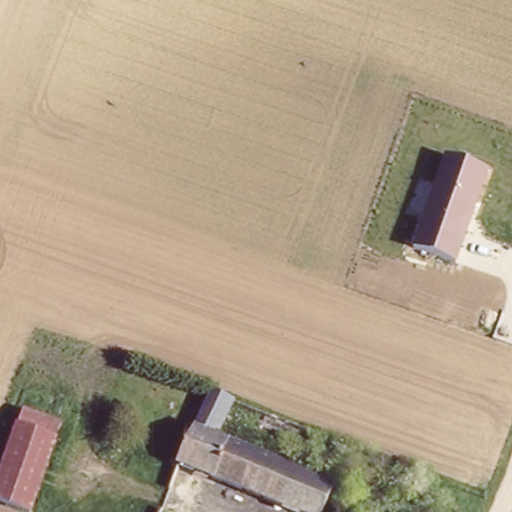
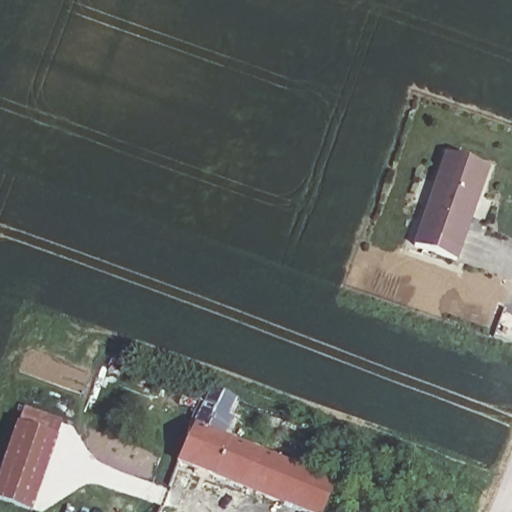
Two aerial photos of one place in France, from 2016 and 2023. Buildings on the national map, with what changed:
unchanged [(457,264),(412,248),(444,154),(490,171),(457,264)]
unchanged [(211,390),(236,399),(223,434),(197,424),(211,390)]
unchanged [(62,424),(31,512),(13,512),(0,507),(0,473),(22,410),(62,424)]
unchanged [(182,459),(197,424),(223,434),(311,470),(332,479),(319,512),(318,512),(182,459)]

